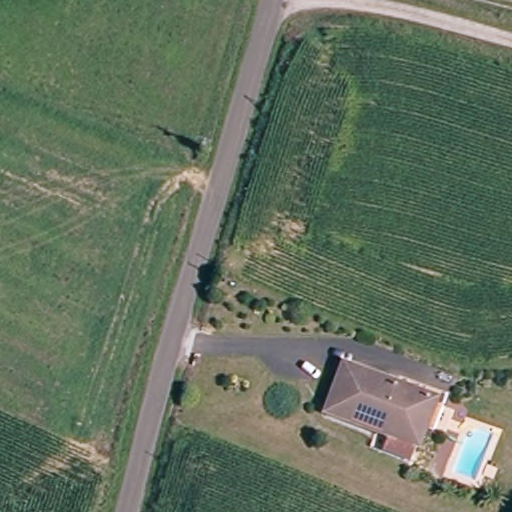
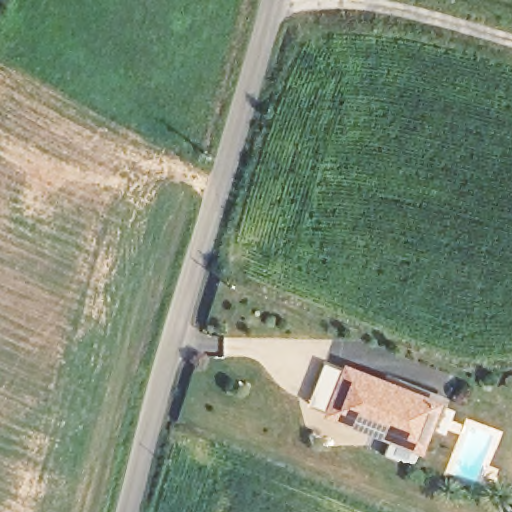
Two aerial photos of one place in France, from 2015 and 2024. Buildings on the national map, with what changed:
unchanged [(387,436),(380,434),(327,415),(343,370),(433,402),(421,442),(420,447),(416,460),(383,449),(387,436)]

